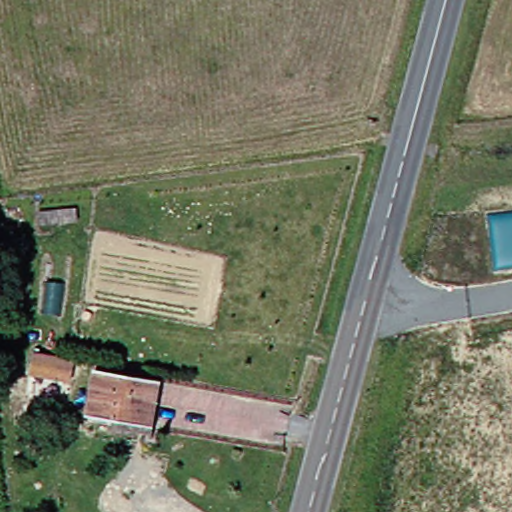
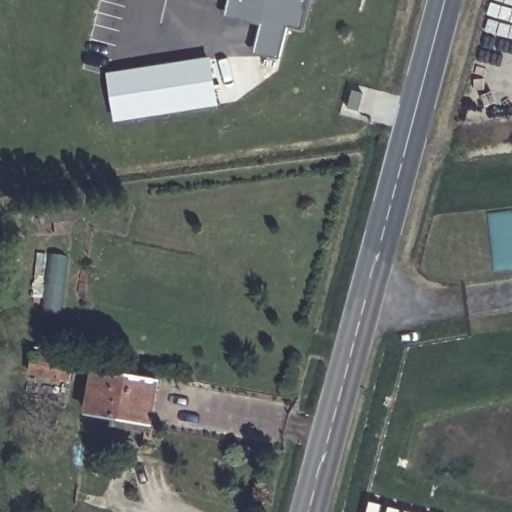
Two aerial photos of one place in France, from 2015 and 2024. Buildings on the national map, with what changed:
new [(309,0),(301,32),(287,29),(278,66),(253,61),(260,31),(224,22),(229,0),(309,0)]
new [(107,75),(206,58),(214,102),(115,120),(107,75)]
unchanged [(29,348),(71,356),(68,373),(26,365),(29,348)]
unchanged [(139,430),(98,423),(100,414),(77,410),(84,370),(137,380),(147,381),(139,430)]

